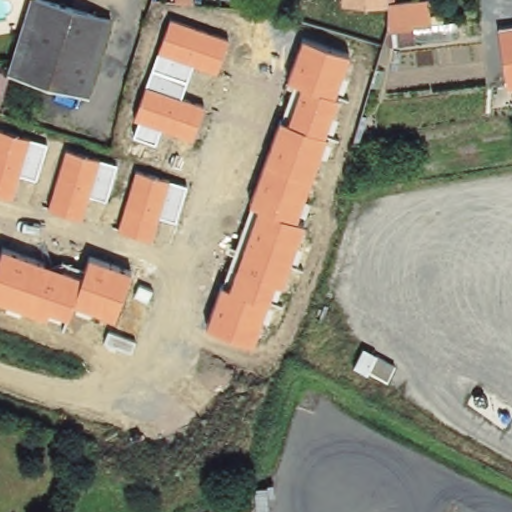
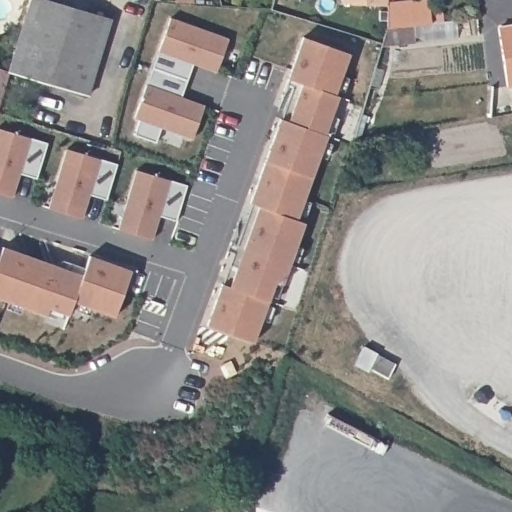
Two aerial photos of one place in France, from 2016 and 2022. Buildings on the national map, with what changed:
unchanged [(111,23),(86,96),(10,71),(33,0),(43,0),(111,23)]
unchanged [(341,3),(341,0),(387,0),(387,5),(341,3)]
unchanged [(431,23),(397,26),(387,27),(388,26),(388,3),(415,0),(428,0),(431,23)]
unchanged [(134,135),(140,120),(135,117),(170,18),(229,37),(218,73),(193,64),(181,96),(207,106),(195,140),(161,128),(156,144),(134,135)]
unchanged [(506,88),(498,28),(512,26),(512,88),(506,88)]
unchanged [(220,286),(250,203),(280,118),(293,81),(288,79),(302,39),(349,54),(335,95),(339,97),(324,135),(326,136),(297,219),(306,225),(286,287),(276,285),(256,343),(207,328),(220,286)]
unchanged [(0,93),(0,69),(6,71),(0,93)]
unchanged [(37,181),(21,176),(12,199),(0,195),(0,128),(49,144),(37,181)]
unchanged [(66,149),(118,165),(106,202),(90,197),(81,219),(47,210),(66,149)]
unchanged [(136,172),(187,187),(176,223),(159,218),(151,242),(120,227),(136,172)]
unchanged [(81,276),(90,257),(131,274),(116,318),(77,304),(70,319),(47,311),(46,318),(0,302),(0,251),(1,247),(81,276)]
unchanged [(368,372),(376,357),(395,367),(387,382),(368,372)]

